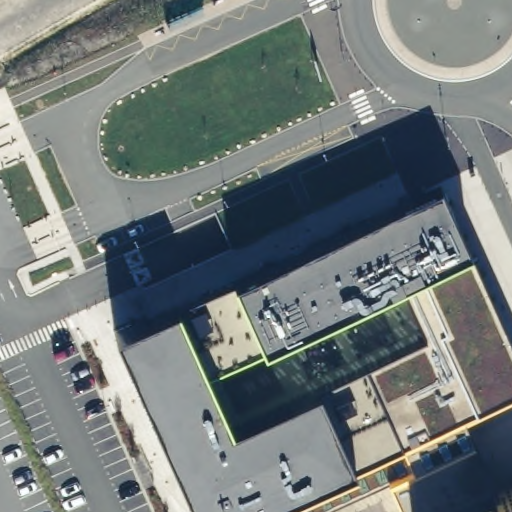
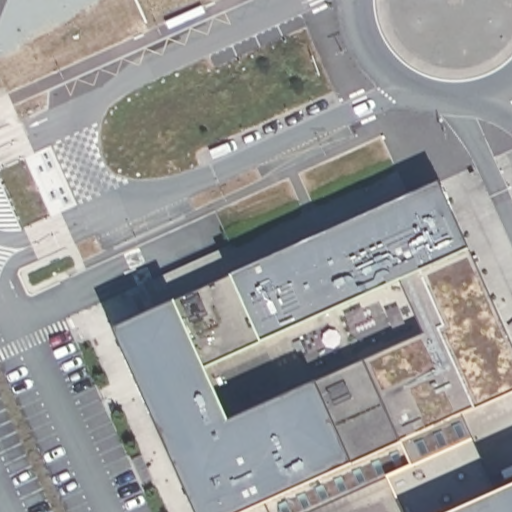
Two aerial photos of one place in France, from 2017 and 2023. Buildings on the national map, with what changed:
unchanged [(484,306),(433,331),(426,333),(402,281),(261,344),(205,370),(227,421),(165,449),(113,331),(437,183),(468,250),(489,303),(484,306)]
unchanged [(307,384),(433,331),(489,303),(512,358),(512,391),(428,429),(442,453),(471,441),(495,494),(512,486),(512,512),(404,512),(389,478),(305,512),(194,512),(165,449),(307,384)]

